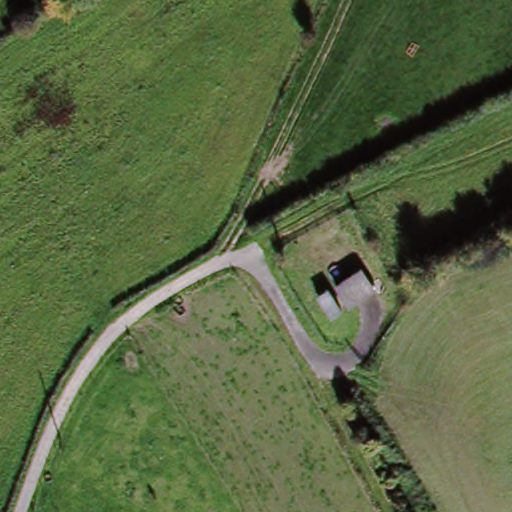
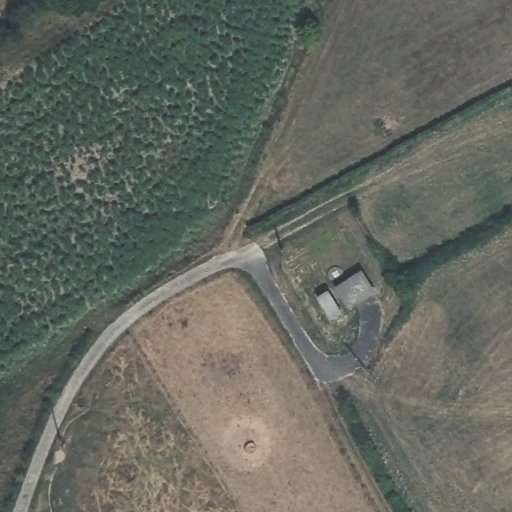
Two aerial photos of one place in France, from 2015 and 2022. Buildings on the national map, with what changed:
unchanged [(335,289),(363,275),(374,295),(346,310),(335,289)]

